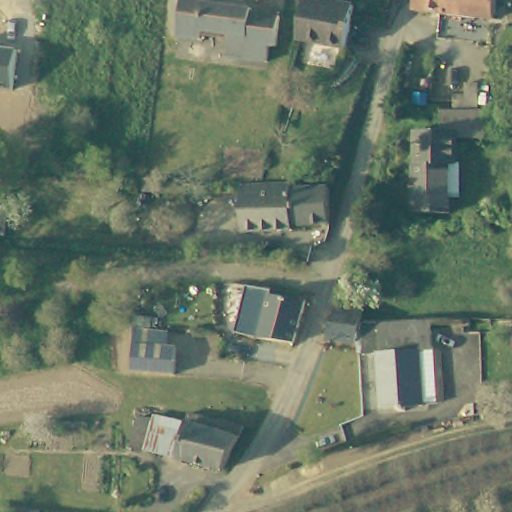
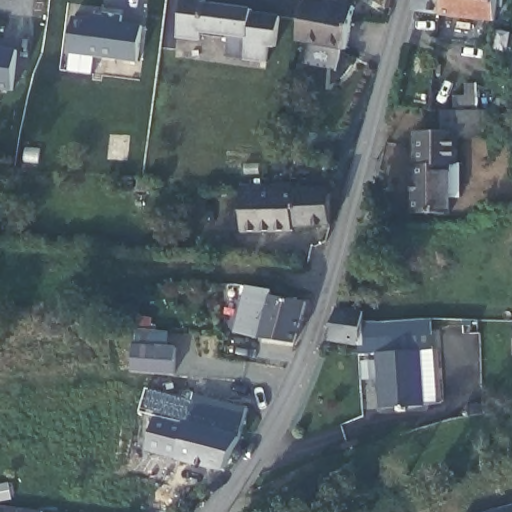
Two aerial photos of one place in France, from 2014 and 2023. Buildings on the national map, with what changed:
unchanged [(280,16),(275,45),(268,44),(264,60),(225,53),(228,35),(199,29),(199,34),(175,30),(181,0),(208,0),(252,7),(252,11),(280,16)]
unchanged [(303,0),(324,0),(330,1),(330,0),(341,0),(352,4),(342,45),(295,33),(301,11),(303,0)]
unchanged [(495,18),(445,13),(417,10),(420,0),(503,0),(500,18),(495,18)]
new [(66,53),(72,15),(142,25),(136,61),(66,53)]
unchanged [(0,48),(18,49),(15,90),(0,89),(0,48)]
unchanged [(456,129),(437,129),(438,106),(490,106),(489,138),(456,137),(456,129)]
unchanged [(459,197),(451,197),(450,212),(412,212),(412,128),(437,129),(456,129),(456,137),(456,161),(460,161),(459,197)]
unchanged [(290,222),(290,226),(243,227),(239,227),(239,183),(245,184),(256,184),(291,184),(291,189),(326,188),(328,219),(290,222)]
unchanged [(259,339),(243,337),(244,336),(251,287),(251,285),(276,289),(275,294),(311,300),(297,344),(259,339)]
unchanged [(361,309),(360,319),(359,343),(328,339),(339,306),(361,309)]
unchanged [(414,319),(419,319),(424,406),(384,409),(378,319),(414,319)]
unchanged [(133,327),(166,329),(165,348),(175,348),(174,376),(143,374),(131,374),(132,346),(133,327)]
unchanged [(230,482),(149,458),(124,450),(131,404),(193,417),(246,432),(230,482)]
unchanged [(39,512),(0,512),(0,508),(0,504),(39,508),(39,512)]

